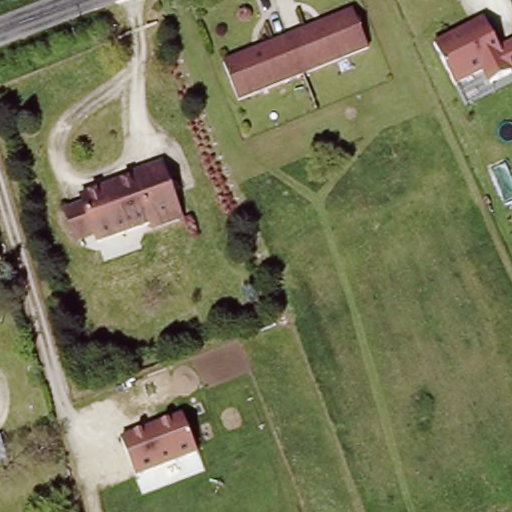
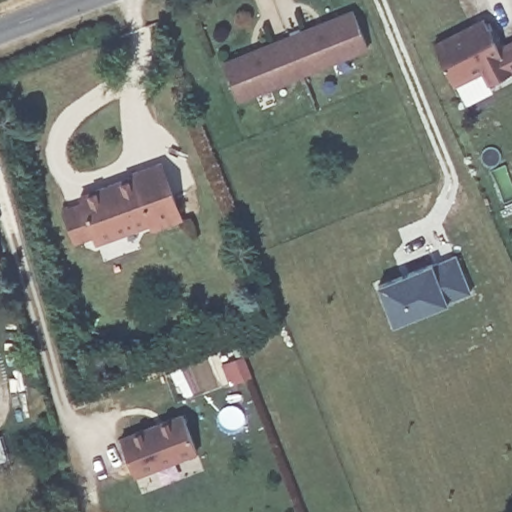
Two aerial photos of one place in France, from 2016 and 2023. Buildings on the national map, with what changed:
unchanged [(236,102),(221,62),(281,39),(346,12),(362,52),(297,77),(236,102)]
unchanged [(488,84),(483,74),(455,87),(435,42),(484,19),(497,45),(512,38),(512,73),(488,84)]
unchanged [(70,209),(87,202),(84,192),(136,174),(135,169),(165,158),(187,219),(156,230),(153,222),(101,240),(99,234),(81,240),(70,209)]
unchanged [(0,252),(0,250),(1,252),(0,252)]
new [(430,262),(430,263),(453,255),(468,292),(445,301),(445,302),(391,323),(375,284),(430,262)]
new [(242,355),(250,375),(230,384),(221,364),(242,355)]
unchanged [(122,438),(187,416),(200,451),(135,477),(122,438)]

